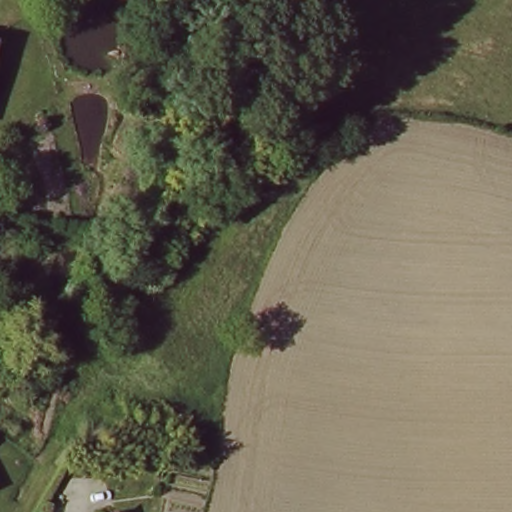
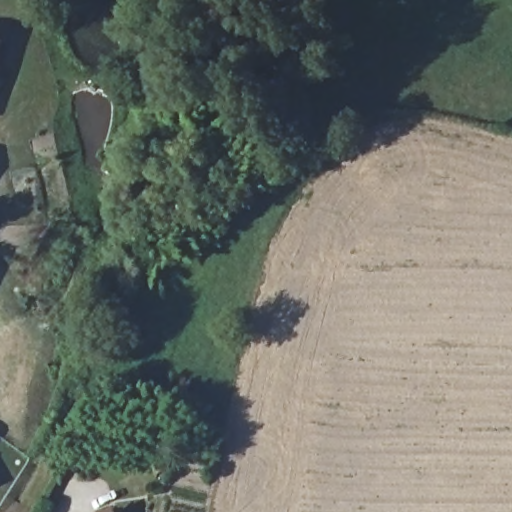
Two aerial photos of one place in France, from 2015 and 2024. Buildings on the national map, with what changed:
unchanged [(114,512),(109,512),(113,510),(114,512)]

